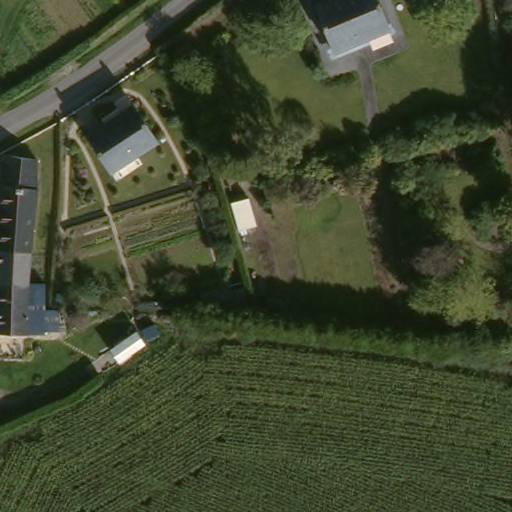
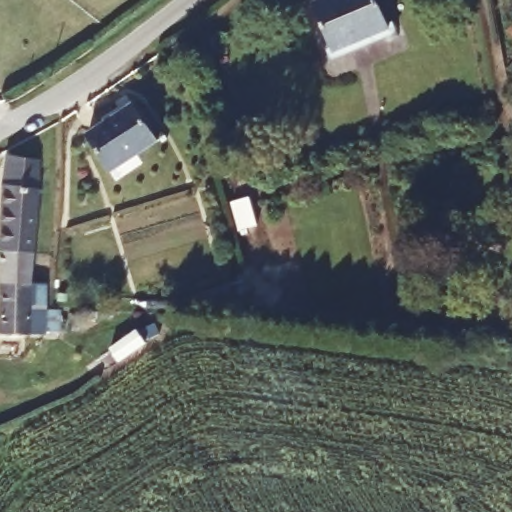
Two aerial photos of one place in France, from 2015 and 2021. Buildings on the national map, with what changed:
unchanged [(388,25),(335,49),(313,2),(316,0),(377,0),(388,25)]
unchanged [(156,137),(114,166),(87,130),(132,101),(156,137)]
unchanged [(2,239),(7,154),(40,156),(35,241),(2,239)]
unchanged [(30,331),(0,329),(0,295),(2,239),(35,241),(34,274),(49,276),(46,332),(30,331)]
unchanged [(131,340),(140,353),(114,370),(112,372),(104,359),(131,340)]

